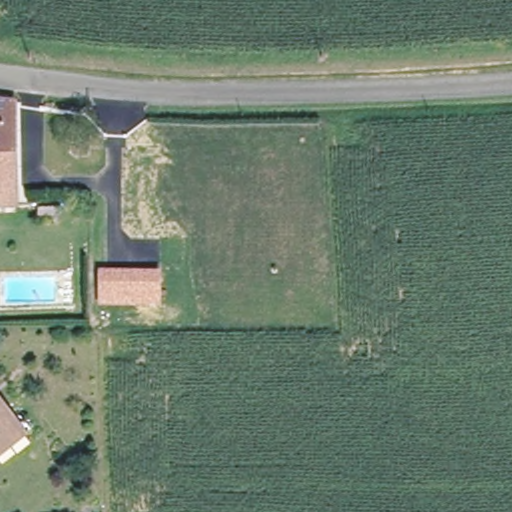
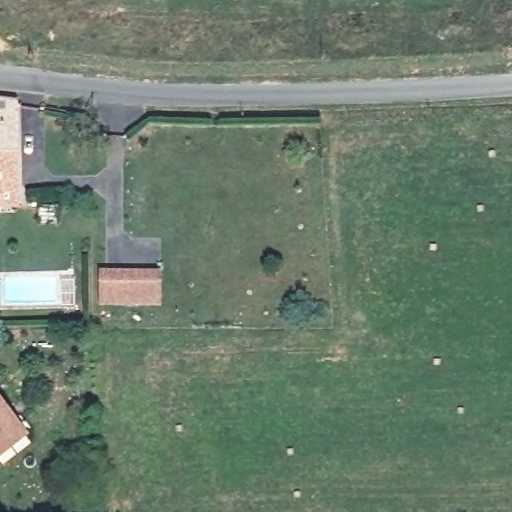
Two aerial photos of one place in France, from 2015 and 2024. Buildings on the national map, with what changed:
unchanged [(19,102),(19,205),(0,205),(0,100),(19,102)]
unchanged [(161,270),(161,306),(99,305),(99,270),(161,270)]
unchanged [(0,450),(0,407),(12,423),(21,435),(0,450)]

